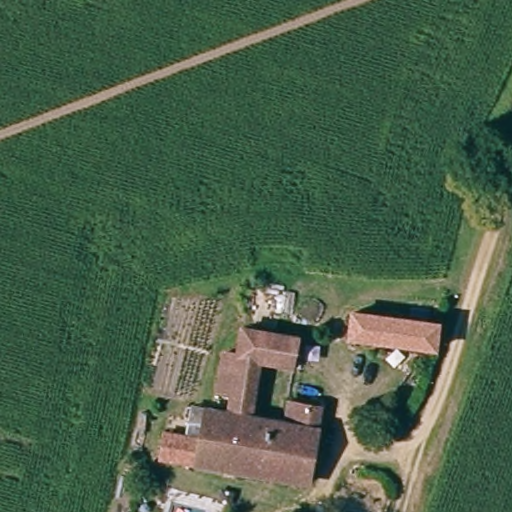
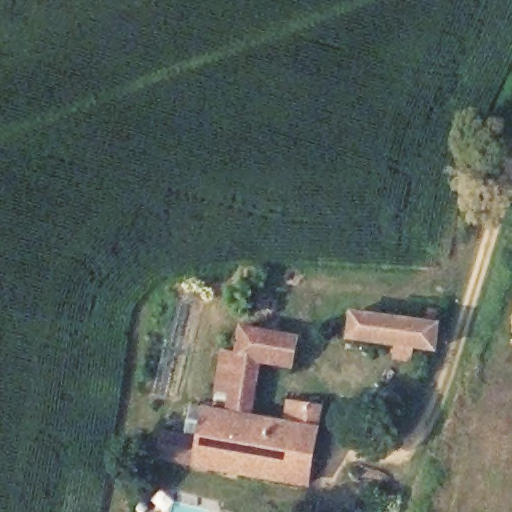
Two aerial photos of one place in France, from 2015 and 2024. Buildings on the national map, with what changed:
unchanged [(436,320),(432,348),(350,335),(353,307),(378,310),(436,320)]
unchanged [(229,411),(233,388),(219,386),(225,349),(239,351),(244,325),(274,329),(303,335),(297,367),(259,361),(249,414),(284,424),(288,403),(318,409),(307,482),(159,452),(163,426),(200,433),(205,409),(205,407),(229,411)]

